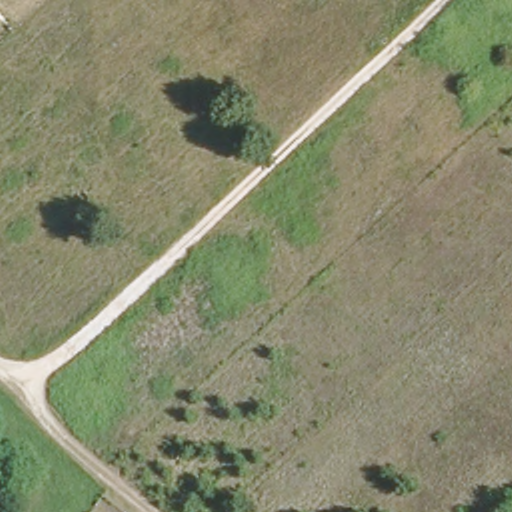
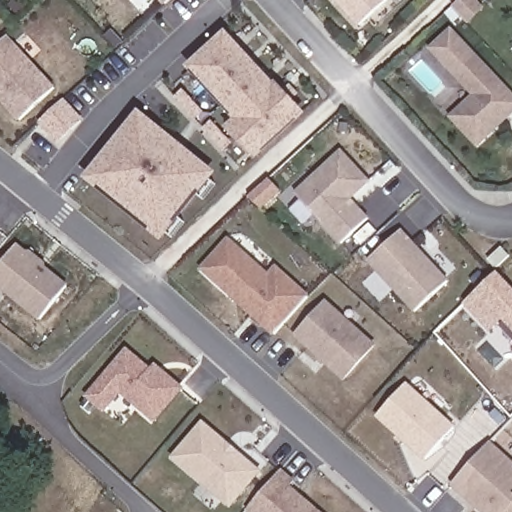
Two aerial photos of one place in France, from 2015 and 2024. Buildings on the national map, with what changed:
new [(161,0),(174,0),(167,6),(161,0)]
new [(334,0),(386,0),(358,27),(334,0)]
new [(512,116),(478,149),(447,119),(469,96),(428,49),(452,27),(512,92),(512,116)]
new [(223,35),(264,80),(266,77),(279,92),(287,85),(293,92),(286,99),(299,113),(257,155),(225,127),(235,117),(189,65),(223,35)]
new [(56,90),(22,122),(0,99),(0,49),(9,40),(56,90)]
new [(174,99),(180,92),(197,111),(191,117),(174,99)]
new [(81,122),(60,142),(42,123),(63,104),(81,122)]
new [(88,176),(137,115),(209,173),(207,176),(213,181),(200,197),(194,192),(176,215),(182,220),(170,235),(163,230),(160,234),(88,176)]
new [(227,143),(221,149),(203,130),(209,125),(227,143)]
new [(293,194),(339,152),(367,182),(344,203),(351,210),(355,207),(366,220),(339,244),(293,194)]
new [(268,177),(282,192),(263,210),(248,196),(268,177)]
new [(312,215),(302,225),(288,210),(299,200),(312,215)]
new [(413,312),(366,260),(401,229),(448,281),(413,312)]
new [(228,242),(254,266),(262,258),(306,293),(272,331),(201,270),(228,242)]
new [(0,288),(0,265),(16,245),(67,287),(39,321),(0,288)]
new [(507,255),(494,268),(486,260),(499,248),(507,255)]
new [(512,331),(502,321),(488,334),(464,304),(497,273),(512,289),(512,331)]
new [(342,382),(292,337),(326,300),(377,345),(342,382)]
new [(137,361),(141,356),(162,374),(179,388),(152,420),(118,391),(102,410),(86,397),(125,350),(137,361)]
new [(424,461),(377,418),(408,383),(455,427),(424,461)]
new [(174,458),(203,424),(227,445),(228,450),(232,454),(237,453),(260,472),(231,507),(174,458)]
new [(451,484),(487,444),(512,466),(512,512),(483,512),(451,484)]
new [(293,483),(289,488),(317,512),(250,512),(247,510),(280,472),(293,483)]

